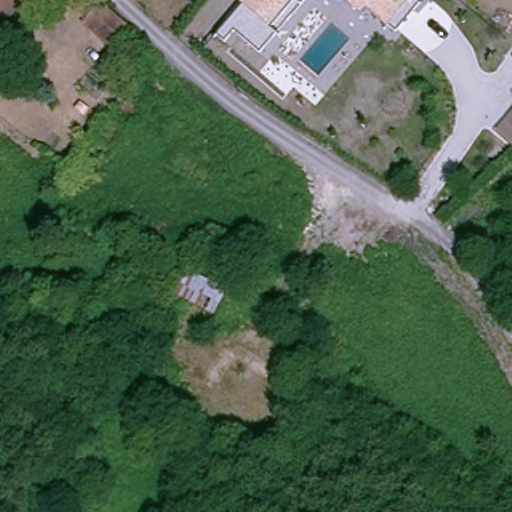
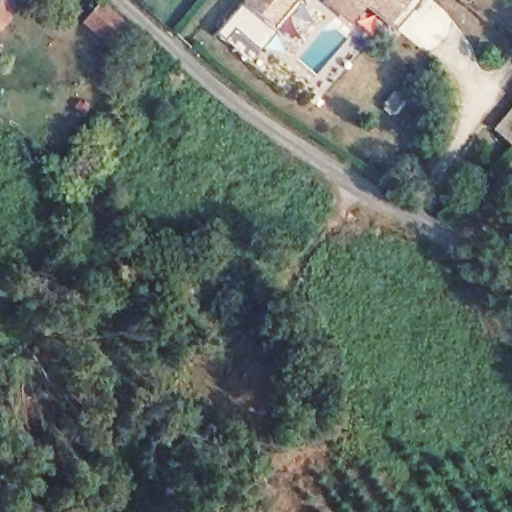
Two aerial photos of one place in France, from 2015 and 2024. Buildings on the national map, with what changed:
unchanged [(0,27),(0,0),(20,0),(21,1),(0,27)]
unchanged [(115,40),(87,16),(101,0),(102,0),(129,22),(140,30),(126,48),(115,40)]
unchanged [(232,31),(223,41),(215,35),(241,3),(243,0),(304,0),(259,54),(232,31)]
unchanged [(363,8),(358,13),(343,0),(407,0),(386,26),(363,8)]
unchanged [(512,110),(512,145),(494,131),(512,110)]
unchanged [(182,269),(226,288),(215,317),(172,294),(182,269)]

